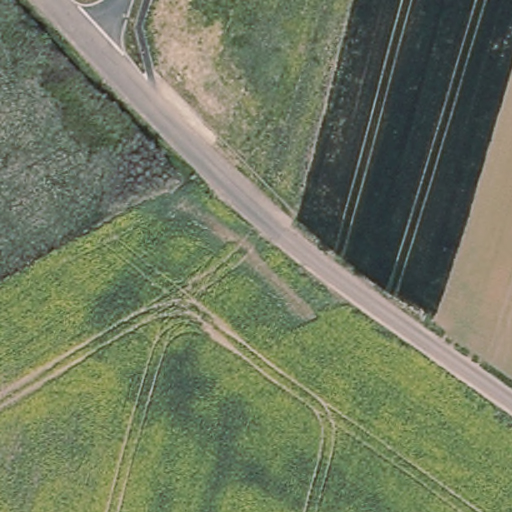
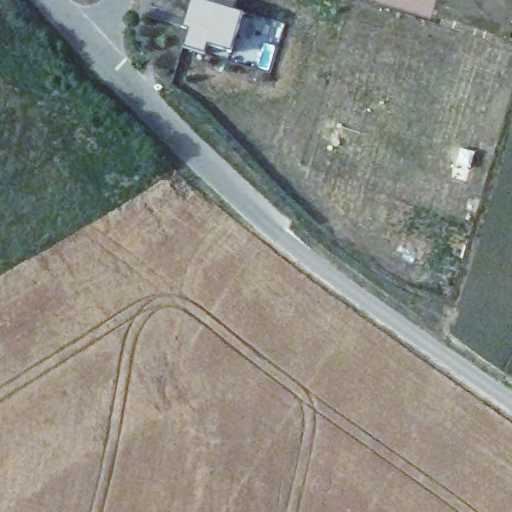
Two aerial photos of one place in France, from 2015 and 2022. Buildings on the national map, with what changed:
new [(234,10),(241,12),(232,50),(206,43),(203,52),(183,46),(189,27),(183,25),(191,0),(237,0),(234,10)]

